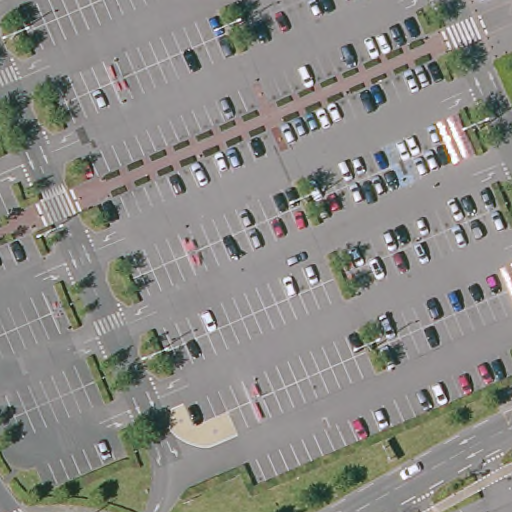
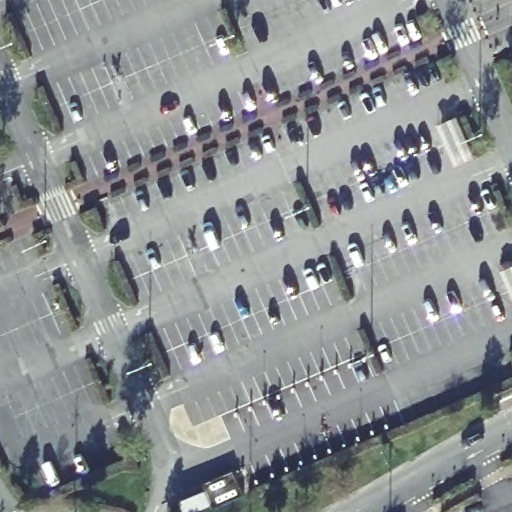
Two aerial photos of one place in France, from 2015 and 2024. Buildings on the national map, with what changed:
[]

